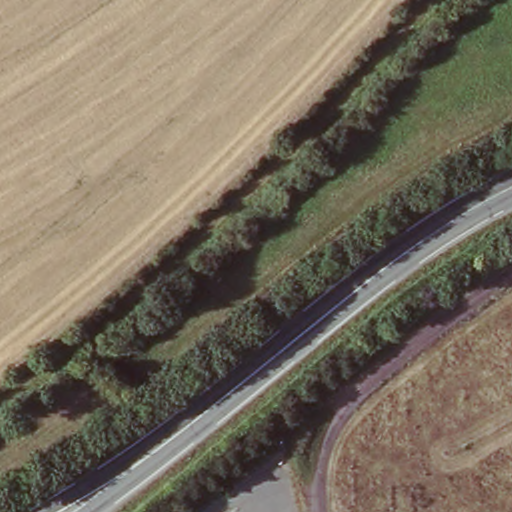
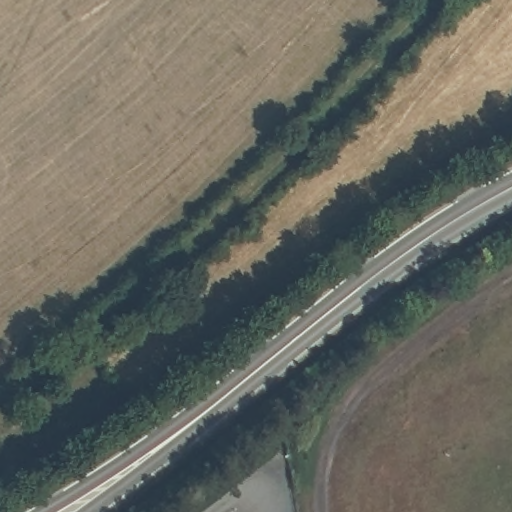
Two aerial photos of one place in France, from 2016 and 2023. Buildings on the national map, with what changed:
[]

